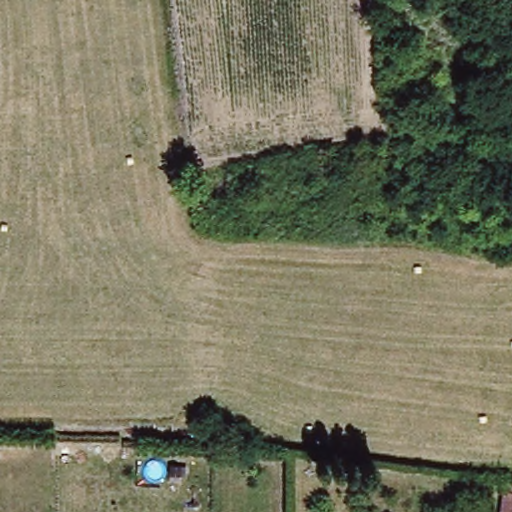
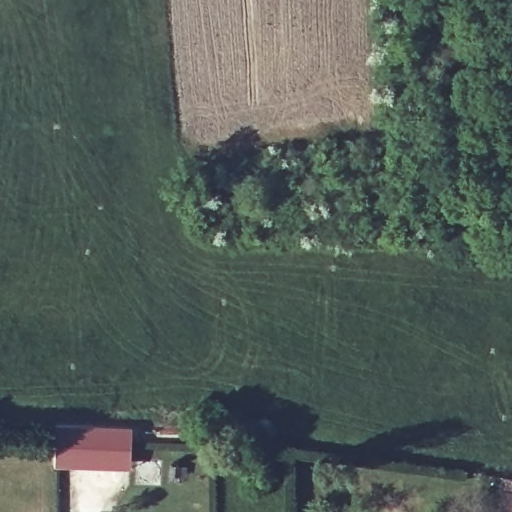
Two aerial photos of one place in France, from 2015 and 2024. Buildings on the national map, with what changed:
new [(56,422),(132,426),(130,469),(55,467),(56,422)]
unchanged [(512,494),(512,512),(500,512),(501,492),(512,494)]

